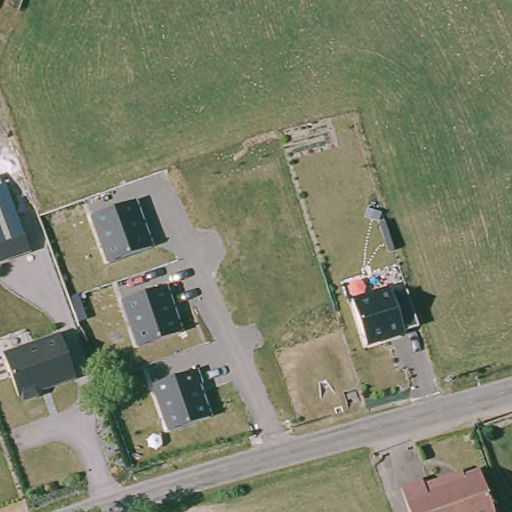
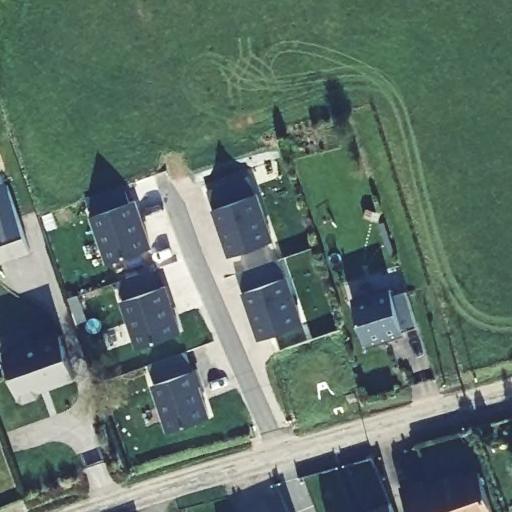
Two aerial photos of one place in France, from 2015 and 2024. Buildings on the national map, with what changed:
new [(210,198),(207,191),(249,176),(272,242),(228,257),(207,199),(210,198)]
unchanged [(0,262),(0,183),(6,182),(30,251),(0,262)]
unchanged [(153,247),(106,262),(89,215),(138,199),(153,247)]
new [(237,274),(280,259),(288,277),(305,323),(257,340),(237,274)]
unchanged [(182,333),(137,347),(120,300),(168,283),(182,333)]
unchanged [(352,301),(406,284),(418,328),(365,345),(352,301)]
unchanged [(61,334),(77,377),(41,389),(38,396),(25,400),(18,397),(3,354),(61,334)]
unchanged [(212,414),(166,431),(150,385),(198,368),(212,414)]
unchanged [(495,512),(410,512),(402,488),(425,481),(425,485),(460,472),(462,476),(480,469),(495,512)]
new [(395,501),(399,512),(364,512),(395,501)]

